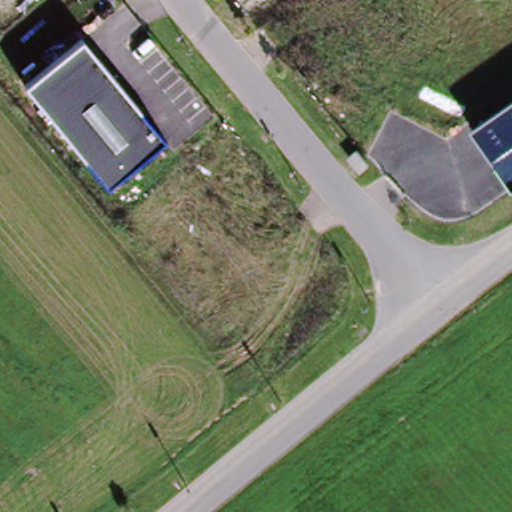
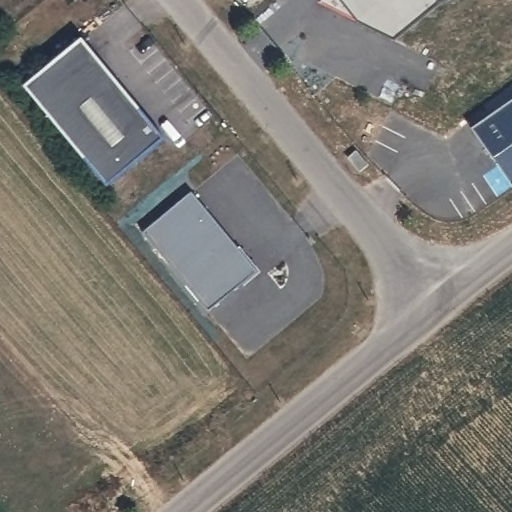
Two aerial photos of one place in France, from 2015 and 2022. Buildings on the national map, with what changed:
new [(397,48),(360,29),(336,0),(455,0),(397,48)]
unchanged [(167,141),(108,189),(24,87),(83,37),(167,141)]
unchanged [(472,130),(512,102),(512,187),(472,130)]
new [(195,197),(261,277),(212,318),(146,238),(195,197)]

